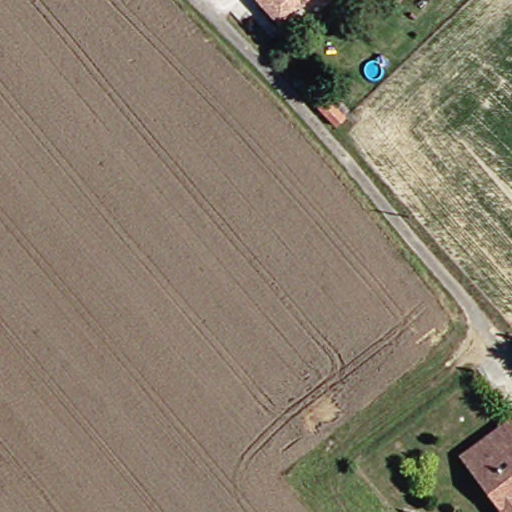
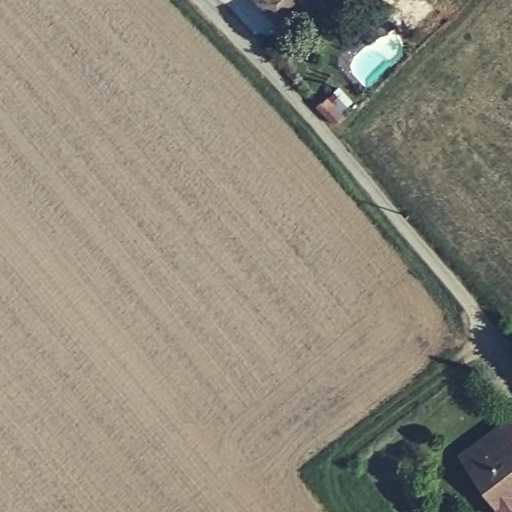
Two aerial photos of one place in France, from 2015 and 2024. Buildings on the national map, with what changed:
unchanged [(249,0),(314,0),(277,32),(249,0)]
unchanged [(473,463),(483,455),(474,443),(510,415),(512,417),(512,500),(507,504),(473,463)]

